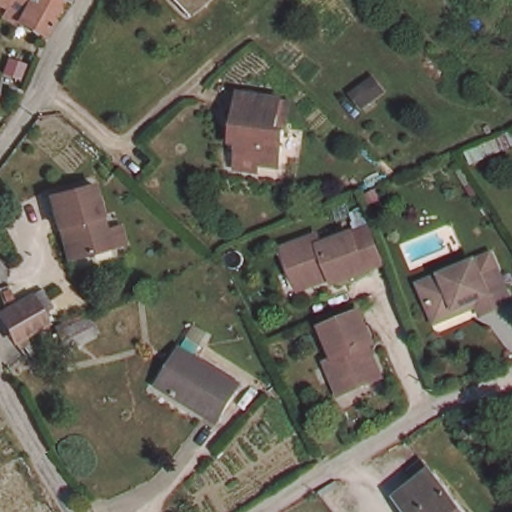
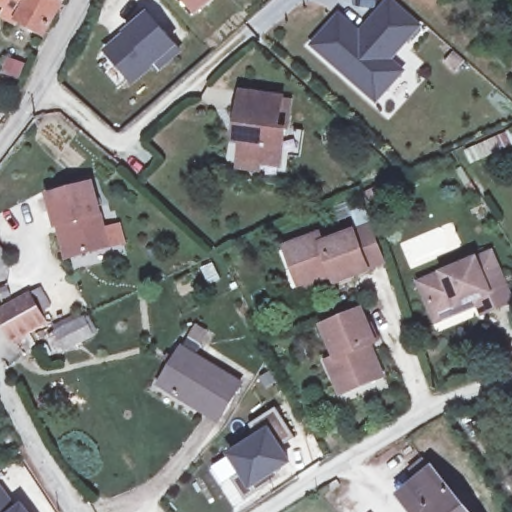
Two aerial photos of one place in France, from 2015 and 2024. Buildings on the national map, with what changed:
unchanged [(59,0),(53,9),(47,22),(46,25),(18,9),(15,15),(2,7),(6,0),(59,0)]
unchanged [(185,0),(204,0),(193,9),(185,0)]
new [(359,29),(385,0),(395,0),(424,26),(393,60),(407,72),(377,105),(311,46),(340,12),(359,29)]
new [(122,32),(130,25),(127,22),(145,8),(148,11),(179,47),(183,52),(160,72),(154,67),(132,86),(102,51),(122,32)]
unchanged [(238,164),(240,145),(233,145),(235,127),(232,127),(236,95),(277,100),(285,102),(281,131),(277,168),(257,166),(255,174),(237,172),(238,164)]
unchanged [(60,240),(57,222),(54,222),(49,190),(95,184),(97,202),(105,250),(67,255),(62,256),(60,240)]
unchanged [(282,245),(315,231),(320,240),(350,228),(367,221),(375,239),(383,259),(366,266),(335,278),(333,273),(325,277),(305,285),(300,287),(292,269),(282,245)]
unchanged [(467,301),(448,309),(452,315),(428,326),(416,300),(409,287),(415,285),(463,262),(478,255),(487,271),(502,302),(485,310),(473,315),(467,301)]
unchanged [(50,319),(18,338),(0,311),(0,310),(31,289),(50,319)]
unchanged [(360,379),(337,390),(322,357),(332,353),(318,323),(355,307),(369,337),(363,340),(367,347),(375,366),(377,372),(360,379)]
unchanged [(55,336),(62,332),(89,321),(96,337),(69,348),(62,352),(55,336)]
unchanged [(215,422),(157,387),(178,351),(184,341),(197,349),(192,358),(235,385),(215,422)]
new [(282,447),(293,464),(278,472),(282,477),(245,501),(232,479),(239,475),(227,453),(256,436),(250,425),(275,408),(295,439),(282,447)]
unchanged [(395,497),(428,471),(461,512),(406,512),(395,497)]
new [(22,503),(28,512),(0,512),(0,486),(15,510),(22,503)]

